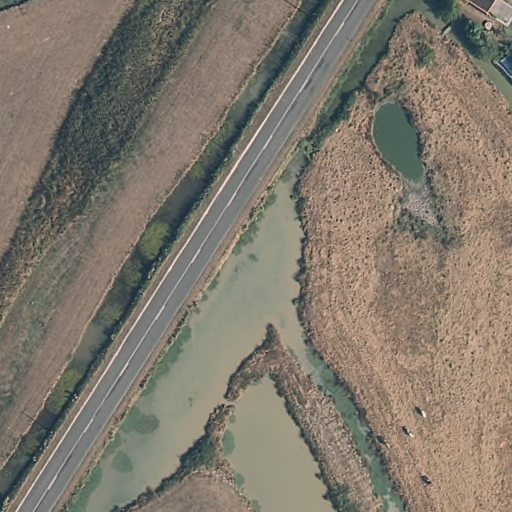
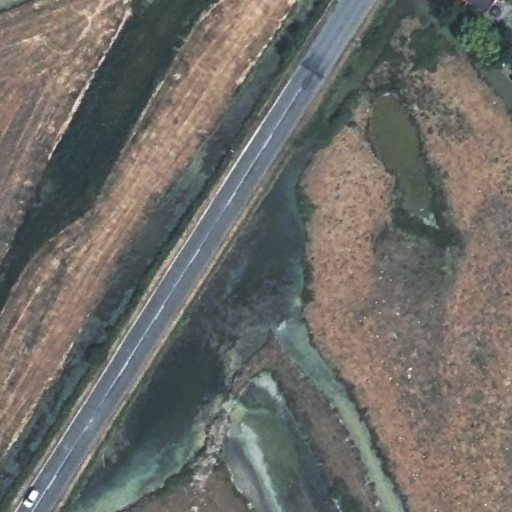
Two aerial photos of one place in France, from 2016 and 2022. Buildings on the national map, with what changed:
unchanged [(463,5),(458,0),(467,0),(463,5)]

